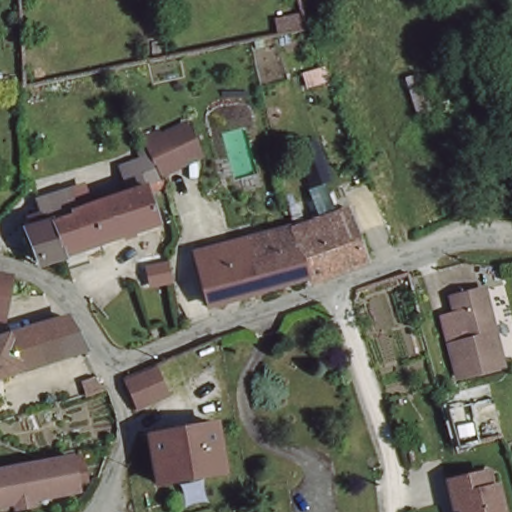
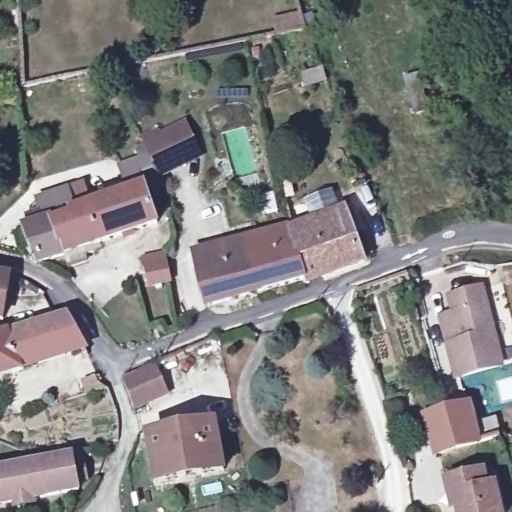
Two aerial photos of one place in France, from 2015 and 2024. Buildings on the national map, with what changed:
unchanged [(75,209),(76,212),(130,193),(128,189),(121,168),(149,158),(145,150),(145,148),(143,145),(141,139),(158,131),(161,138),(169,135),(186,128),(200,159),(181,167),(158,178),(160,182),(144,188),(161,223),(67,253),(45,260),(33,228),(48,223),(41,199),(68,191),(75,209)]
unchanged [(233,262),(290,249),(285,232),(287,231),(340,213),(359,262),(298,278),(205,304),(190,249),(227,240),(233,262)]
unchanged [(284,227),(285,232),(290,249),(233,262),(227,240),(284,227)]
unchanged [(9,278),(0,312),(0,276),(9,278)]
unchanged [(452,306),(483,298),(505,370),(458,384),(447,352),(465,346),(452,306)]
unchanged [(64,318),(83,348),(0,377),(0,339),(64,318)]
unchanged [(135,378),(150,371),(155,391),(139,396),(135,378)]
new [(434,457),(423,414),(471,402),(482,444),(434,457)]
unchanged [(146,439),(215,428),(224,474),(154,486),(146,439)]
unchanged [(73,463),(77,489),(2,512),(0,512),(0,474),(73,463)]
unchanged [(446,477),(483,469),(486,486),(494,484),(500,512),(457,512),(453,493),(450,494),(446,477)]

